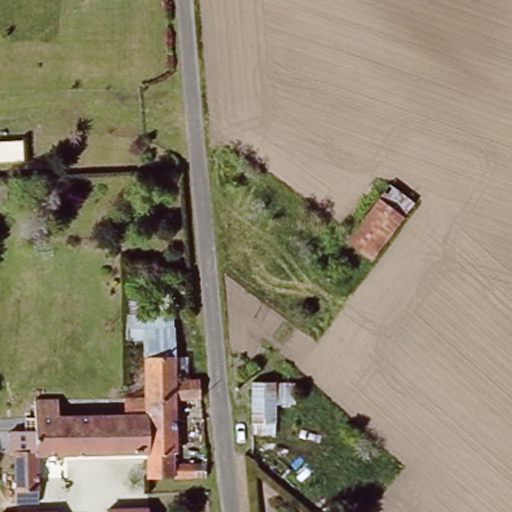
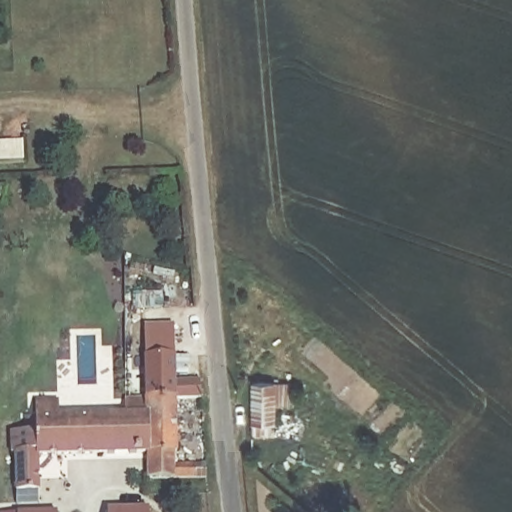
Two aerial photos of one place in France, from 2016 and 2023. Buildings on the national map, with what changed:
demolished [(417,200),(373,261),(346,235),(390,178),(417,200)]
unchanged [(149,452),(60,456),(59,475),(43,475),(47,505),(57,505),(58,512),(15,512),(12,424),(30,424),(32,395),(60,395),(62,408),(139,406),(140,340),(125,340),(122,290),(145,290),(146,306),(175,305),(182,375),(202,376),(202,400),(180,400),(180,458),(149,452)]
unchanged [(278,406),(277,432),(253,432),(250,379),(294,378),(297,406),(278,406)]
unchanged [(207,459),(207,480),(148,480),(149,452),(180,458),(207,459)]

